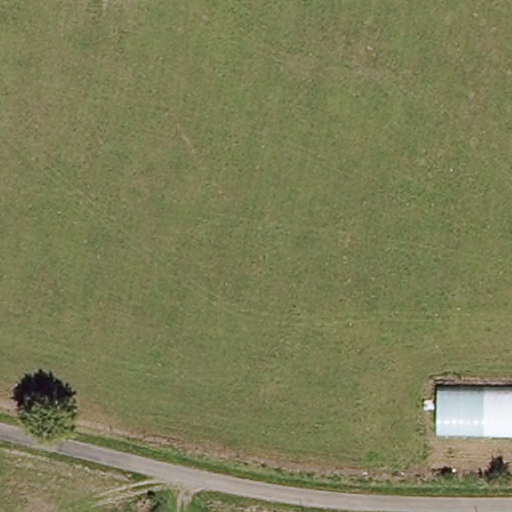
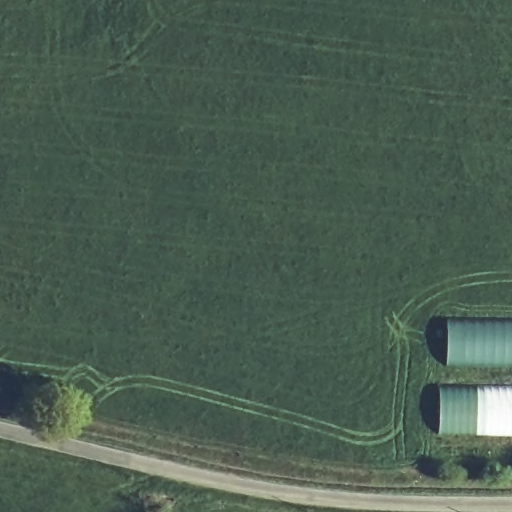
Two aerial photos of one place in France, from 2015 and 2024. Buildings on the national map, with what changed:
new [(447,363),(446,318),(512,320),(512,364),(447,363)]
unchanged [(435,429),(437,385),(512,385),(512,430),(435,429)]

